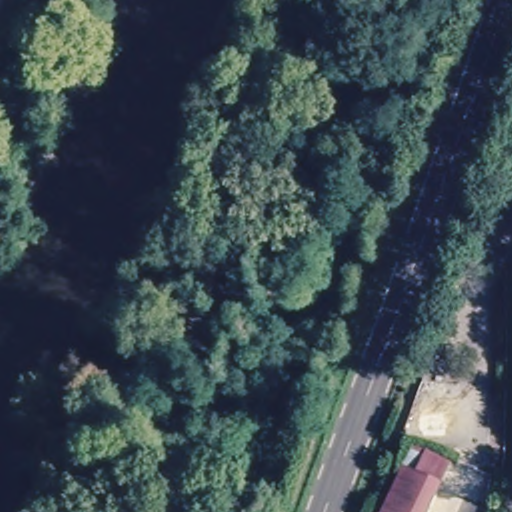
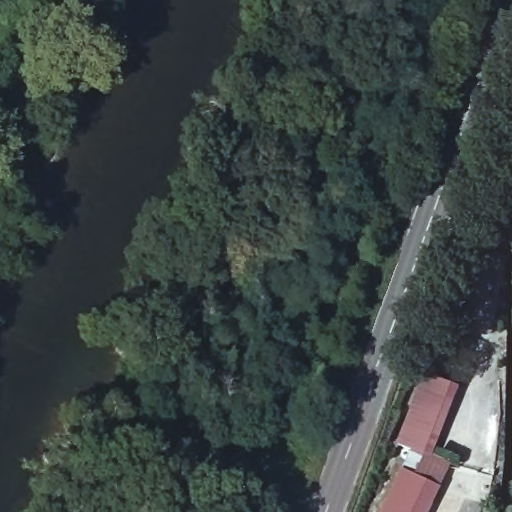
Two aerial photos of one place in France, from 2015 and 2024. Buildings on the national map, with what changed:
new [(424,372),(460,387),(430,457),(426,455),(415,478),(402,471),(410,451),(396,443),(424,372)]
unchanged [(415,478),(426,455),(430,457),(450,466),(445,475),(431,505),(428,512),(383,512),(402,471),(415,478)]

